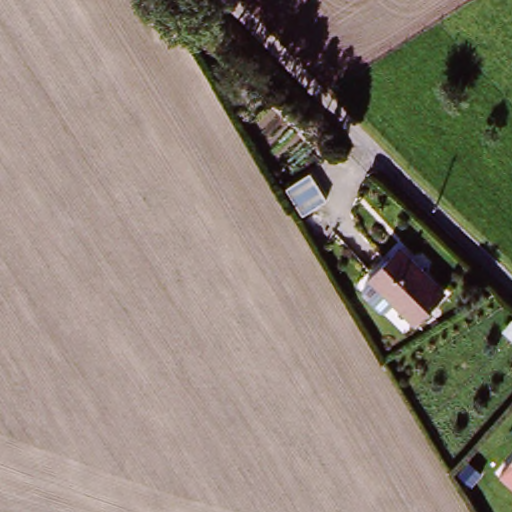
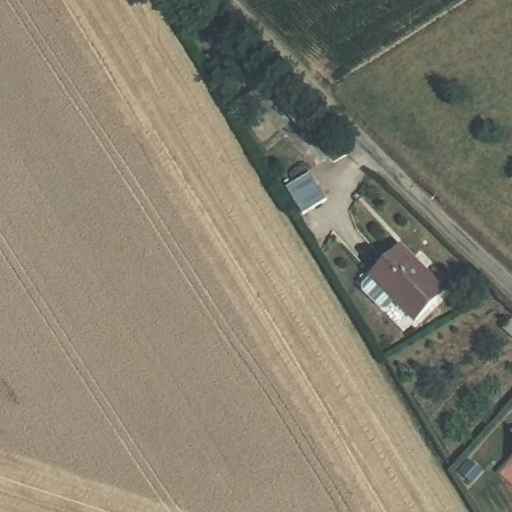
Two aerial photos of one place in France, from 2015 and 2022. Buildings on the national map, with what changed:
unchanged [(314,241),(302,231),(293,217),(313,196),(325,209),(335,221),(314,241)]
unchanged [(385,314),(366,296),(367,292),(374,281),(400,253),(442,291),(415,322),(399,306),(392,314),(385,314)]

